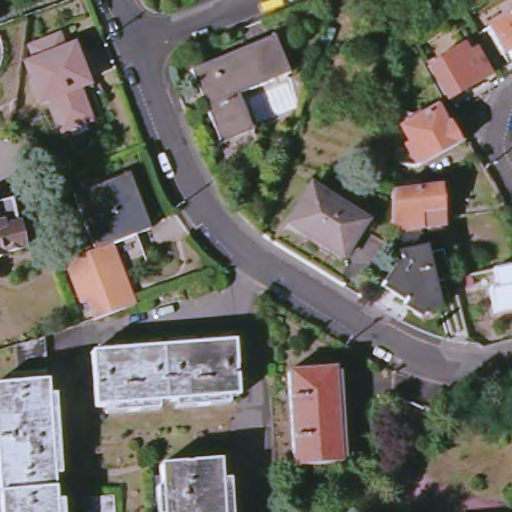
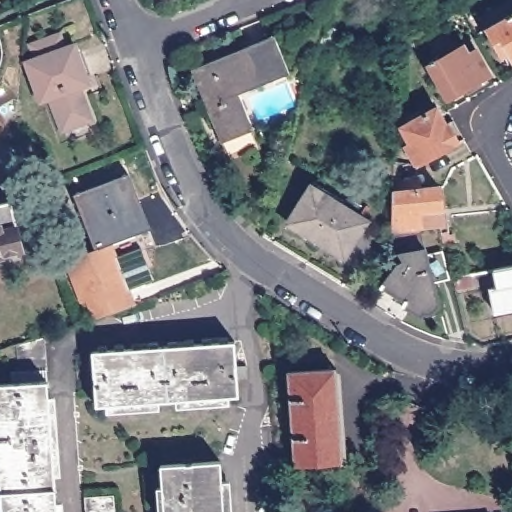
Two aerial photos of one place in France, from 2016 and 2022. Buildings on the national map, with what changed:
unchanged [(512,18),(512,61),(494,28),(512,18)]
unchanged [(51,102),(37,107),(22,67),(36,62),(31,50),(62,38),(67,50),(77,47),(92,86),(82,91),(93,121),(62,132),(51,102)]
unchanged [(190,76),(272,39),(288,75),(241,98),(255,131),(222,147),(190,76)]
unchanged [(448,97),(431,67),(465,47),(470,55),(476,51),(490,75),(449,99),(448,97)]
unchanged [(403,122),(441,111),(451,128),(462,123),(472,142),(425,166),(401,163),(403,122)]
unchanged [(131,172),(151,228),(137,233),(145,254),(120,263),(135,304),(91,319),(84,299),(78,302),(65,266),(74,255),(93,249),(73,193),(131,172)]
unchanged [(290,221),(314,183),(368,222),(344,260),(290,221)]
unchanged [(421,230),(397,232),(394,233),(394,192),(442,188),(444,211),(445,222),(445,232),(450,231),(451,234),(455,233),(458,245),(446,248),(441,228),(421,230)]
unchanged [(13,202),(24,250),(3,254),(4,257),(0,258),(0,205),(13,202)]
unchanged [(398,270),(401,271),(403,271),(403,265),(400,265),(397,232),(421,230),(427,254),(443,250),(450,280),(434,283),(435,288),(438,301),(438,304),(439,306),(438,308),(437,311),(436,313),(433,315),(431,315),(428,316),(425,315),(422,312),(419,311),(382,286),(394,268),(398,270)]
unchanged [(496,312),(492,288),(499,287),(495,268),(512,265),(512,309),(496,312)]
unchanged [(453,277),(471,273),(474,289),(457,291),(453,277)]
unchanged [(23,341),(24,343),(42,336),(44,335),(47,370),(16,374),(15,344),(23,341)]
unchanged [(96,349),(237,340),(240,395),(99,403),(96,349)]
unchanged [(297,466),(290,372),(337,368),(343,463),(297,466)]
unchanged [(47,380),(55,512),(0,512),(0,384),(47,380)]
unchanged [(167,476),(166,466),(228,463),(231,512),(161,512),(159,476),(167,476)]
unchanged [(113,503),(113,512),(86,512),(85,505),(113,503)]

